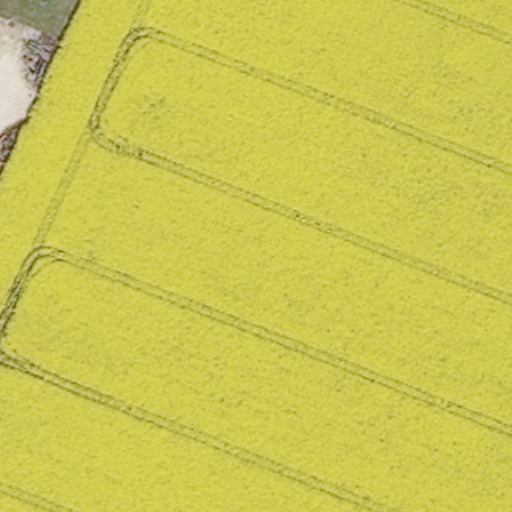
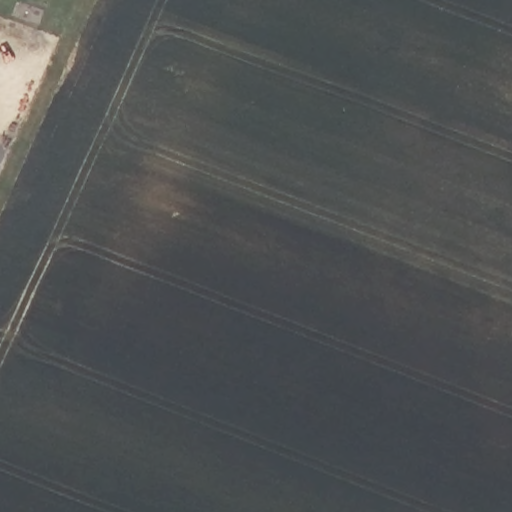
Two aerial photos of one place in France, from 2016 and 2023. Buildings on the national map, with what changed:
[]

